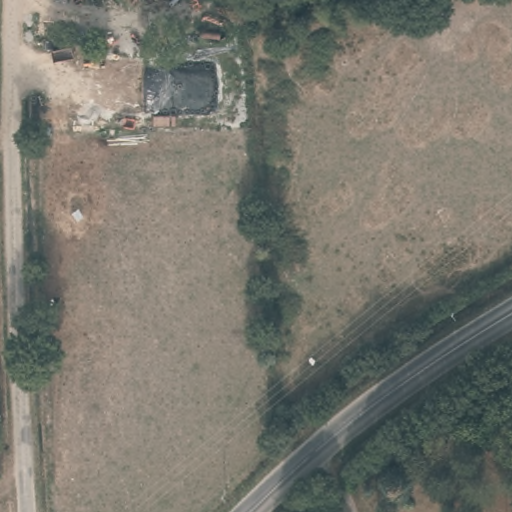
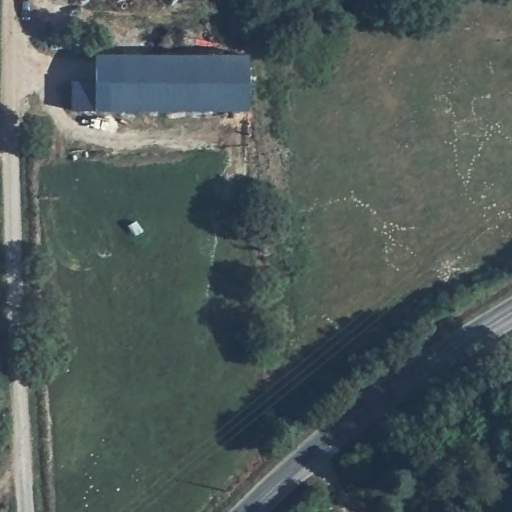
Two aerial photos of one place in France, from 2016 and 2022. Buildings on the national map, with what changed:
new [(73,110),(72,79),(95,79),(95,54),(250,54),(249,110),(73,110)]

